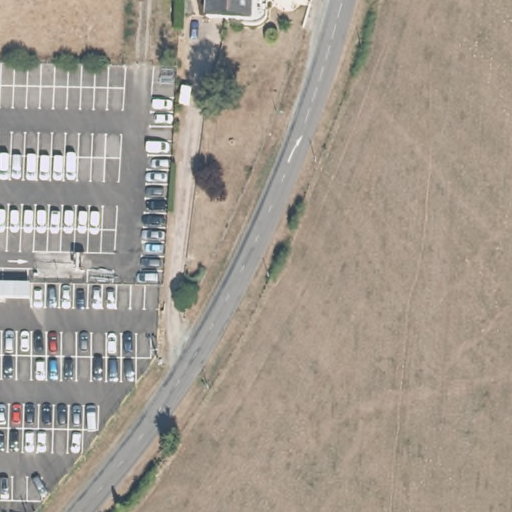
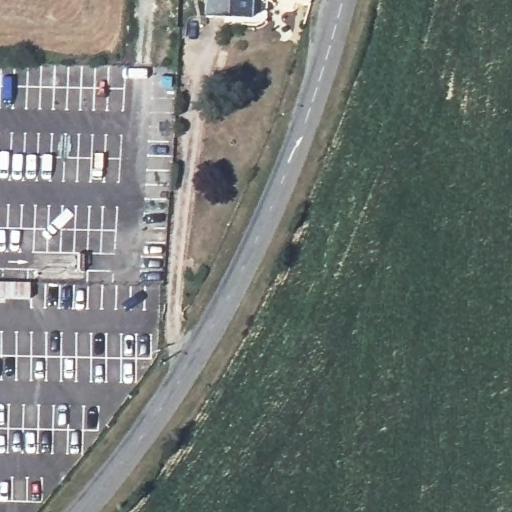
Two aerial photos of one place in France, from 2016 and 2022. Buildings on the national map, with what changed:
unchanged [(255,13),(210,11),(211,0),(255,0),(255,13)]

